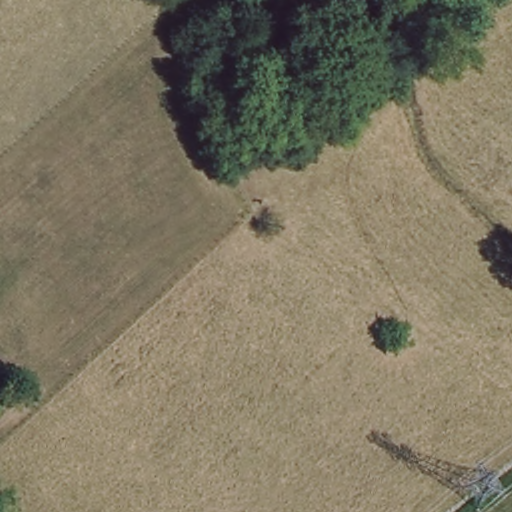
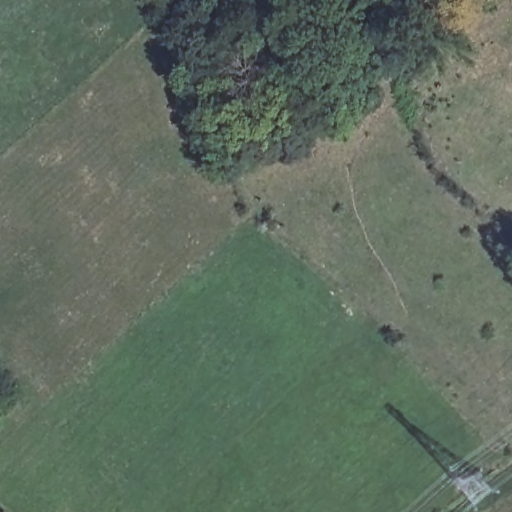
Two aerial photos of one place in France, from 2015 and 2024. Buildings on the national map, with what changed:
unchanged [(0,409),(0,386),(7,379),(20,393),(2,411),(0,409)]

